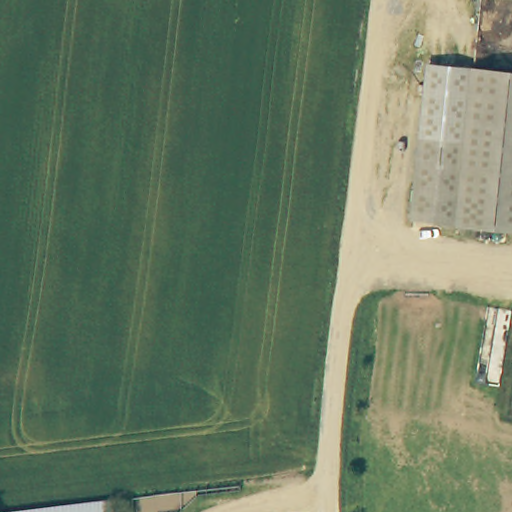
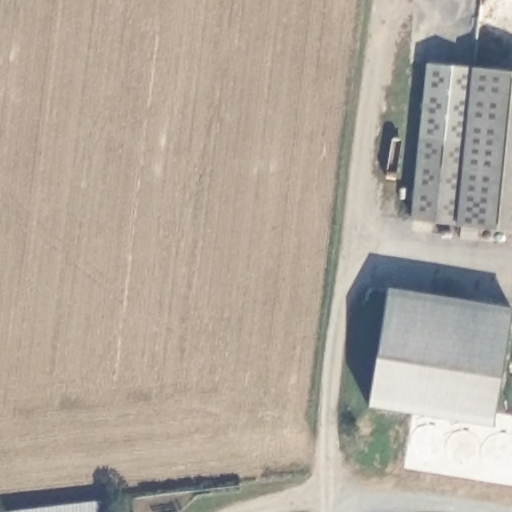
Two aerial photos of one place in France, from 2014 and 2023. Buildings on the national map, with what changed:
unchanged [(407,219),(423,64),(468,68),(456,192),(508,198),(505,229),(407,219)]
unchanged [(512,73),(512,230),(505,229),(508,198),(456,192),(468,68),(512,73)]
new [(492,426),(369,407),(388,287),(512,307),(512,315),(492,426)]
unchanged [(107,501),(108,512),(13,512),(107,501)]

